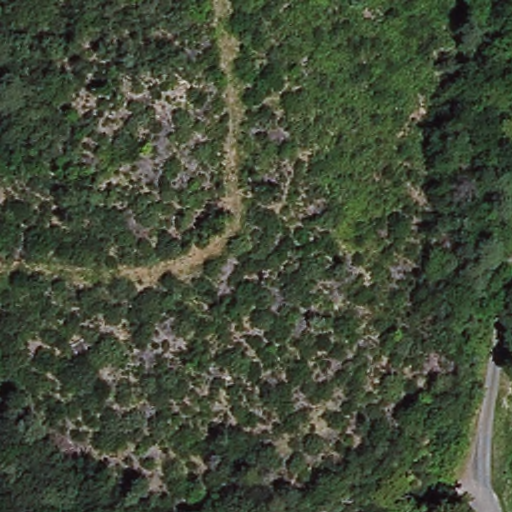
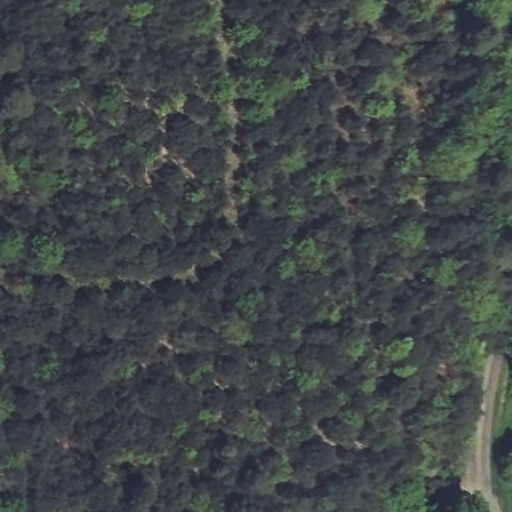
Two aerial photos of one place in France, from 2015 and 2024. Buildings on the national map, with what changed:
unchanged [(434,486),(449,493),(441,512),(423,512),(434,486)]

